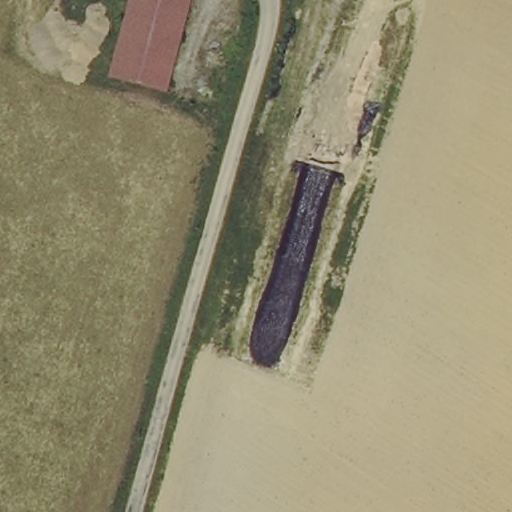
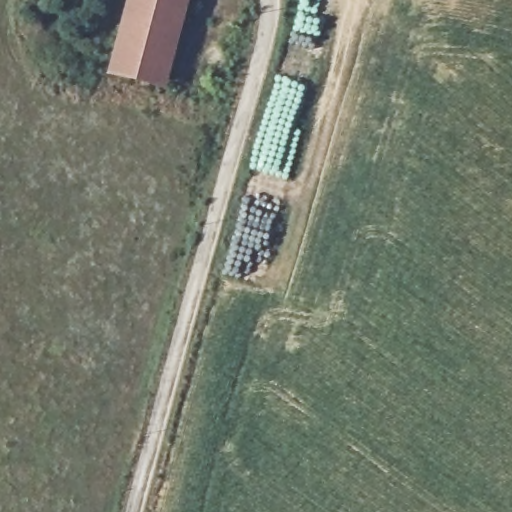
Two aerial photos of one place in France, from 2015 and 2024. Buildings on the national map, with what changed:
unchanged [(110,77),(131,0),(188,0),(171,65),(163,91),(154,89),(110,77)]

